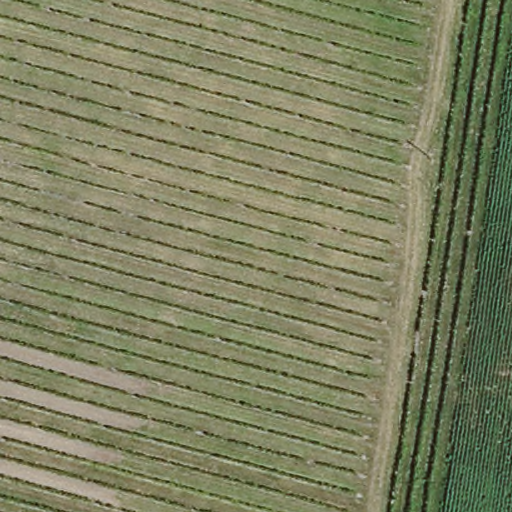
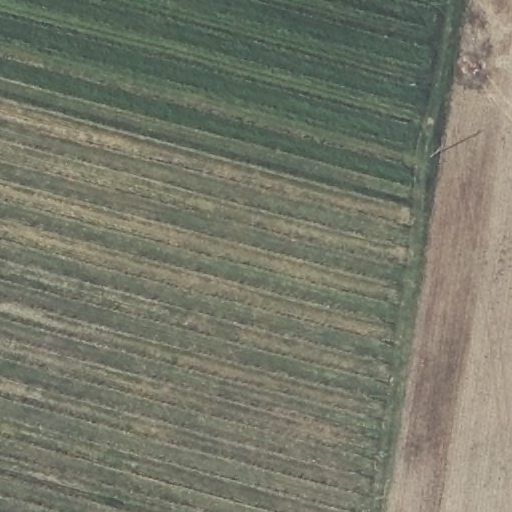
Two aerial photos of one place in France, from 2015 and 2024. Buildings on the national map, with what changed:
[]

